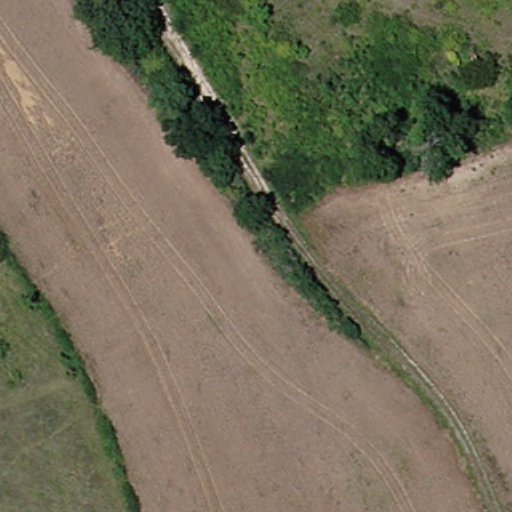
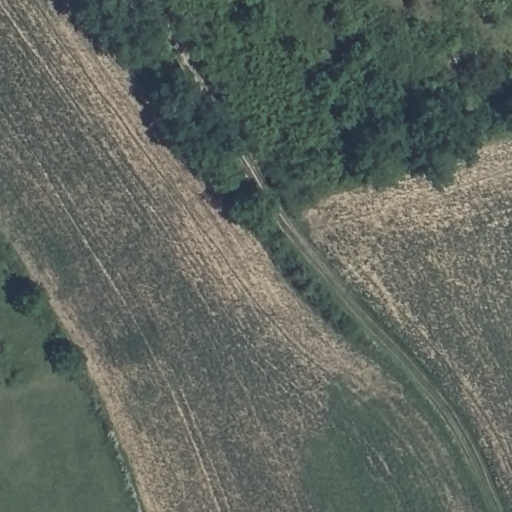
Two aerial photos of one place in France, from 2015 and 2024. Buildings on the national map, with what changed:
unchanged [(458,89),(444,65),(468,53),(482,76),(458,89)]

